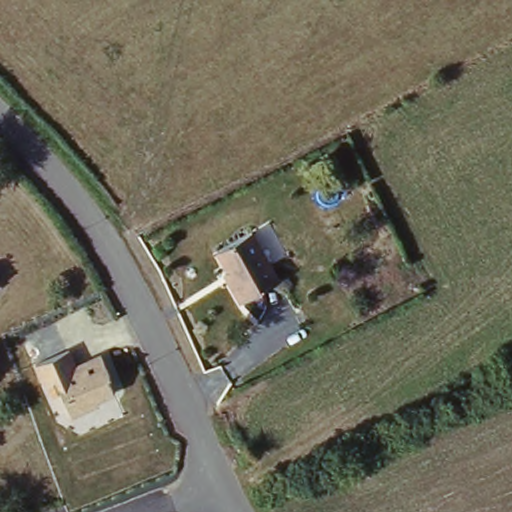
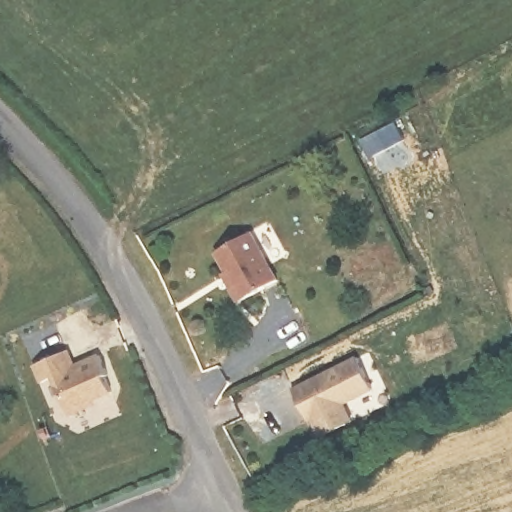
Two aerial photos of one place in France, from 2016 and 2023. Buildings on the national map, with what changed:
unchanged [(254,229),(281,278),(245,298),(235,281),(240,278),(222,246),(254,229)]
unchanged [(78,361),(99,353),(116,395),(99,402),(100,405),(73,417),(56,381),(44,386),(34,365),(71,349),(78,361)]
new [(292,389),(357,355),(373,390),(346,403),(354,420),(321,435),(312,420),(309,422),(292,389)]

